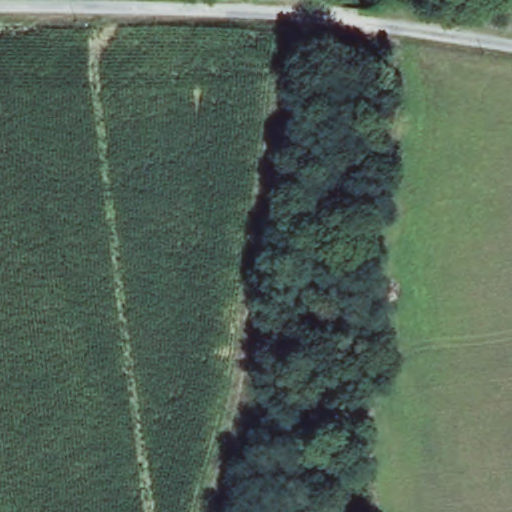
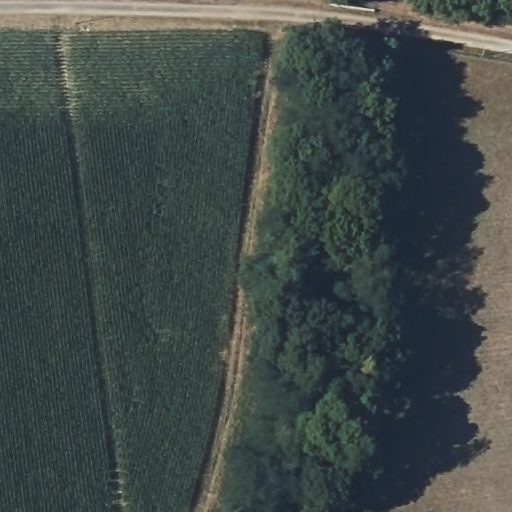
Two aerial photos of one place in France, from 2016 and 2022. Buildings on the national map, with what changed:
[]

